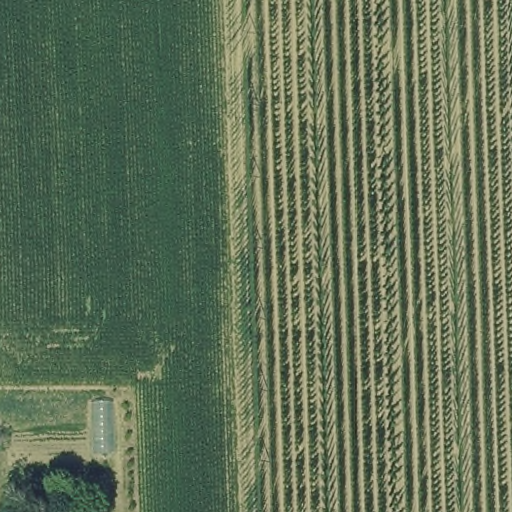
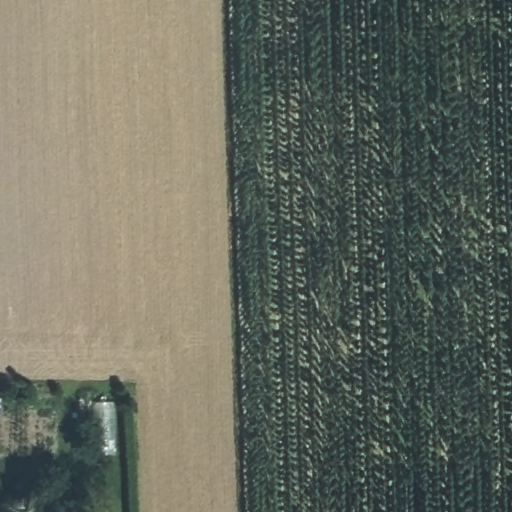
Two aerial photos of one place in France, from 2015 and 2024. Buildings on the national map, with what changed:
[]

